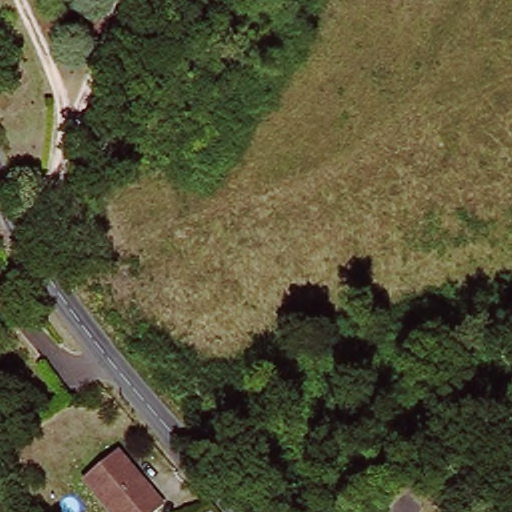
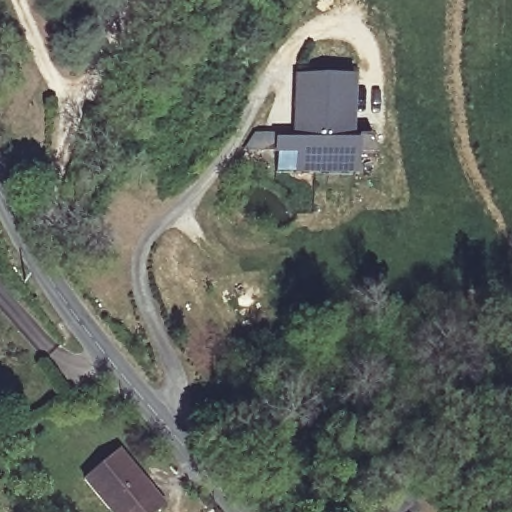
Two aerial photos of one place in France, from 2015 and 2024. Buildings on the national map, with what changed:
new [(353,136),(293,134),(296,71),(354,72),(353,136)]
new [(378,159),(358,158),(358,178),(274,176),(275,134),(293,134),(353,136),(369,138),(378,159)]
unchanged [(24,386),(0,392),(0,361),(16,357),(24,386)]
unchanged [(83,480),(112,452),(159,505),(151,512),(111,512),(83,480)]

